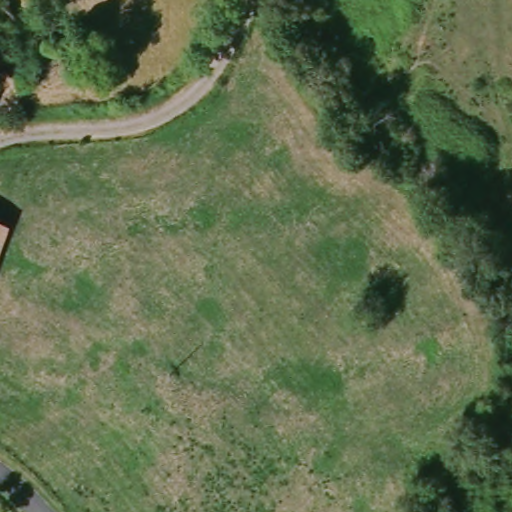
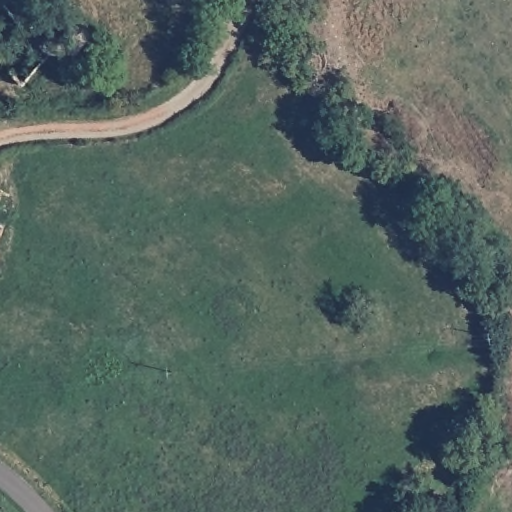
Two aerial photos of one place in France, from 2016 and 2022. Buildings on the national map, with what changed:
unchanged [(0,230),(0,227),(1,228),(0,230)]

